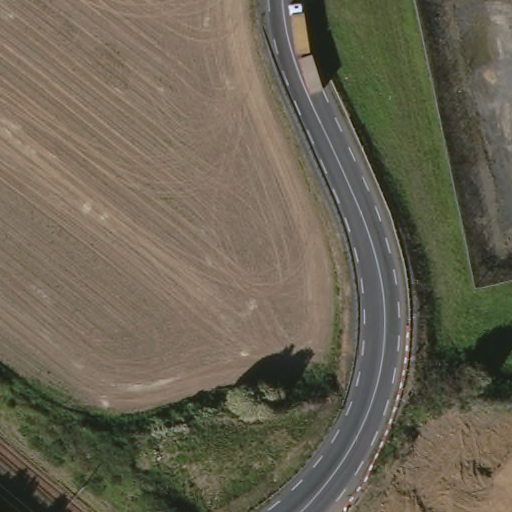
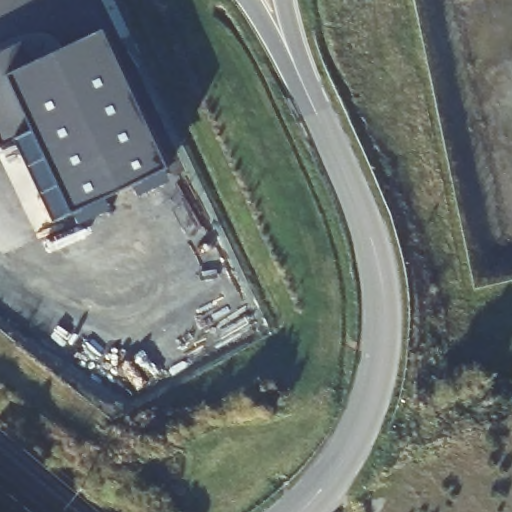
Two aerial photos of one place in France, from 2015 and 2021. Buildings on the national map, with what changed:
new [(40,63),(103,33),(169,170),(78,213),(39,132),(8,147),(0,131),(0,56),(30,42),(40,63)]

